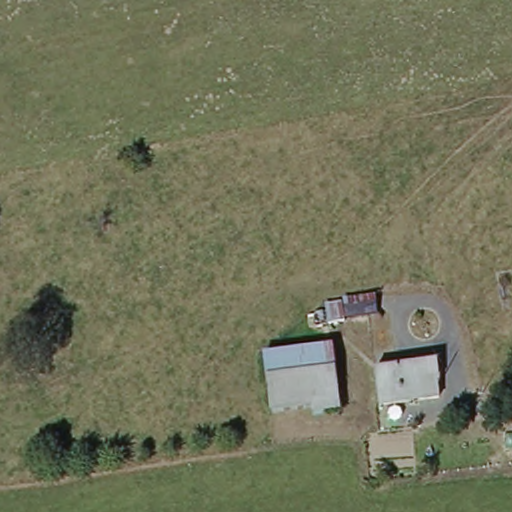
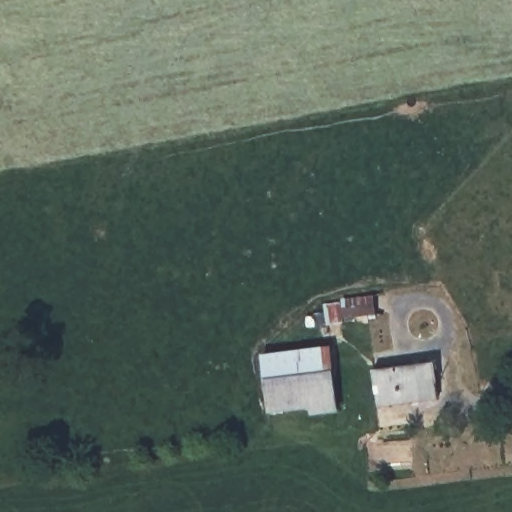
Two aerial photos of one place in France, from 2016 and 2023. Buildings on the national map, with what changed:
unchanged [(348,302),(376,296),(380,316),(351,321),(349,304),(348,302)]
unchanged [(341,306),(344,324),(330,328),(326,310),(341,306)]
unchanged [(330,354),(335,383),(270,395),(265,364),(287,360),(330,354)]
unchanged [(422,367),(427,404),(370,412),(365,376),(422,367)]
unchanged [(270,395),(335,383),(338,409),(275,421),(270,395)]

